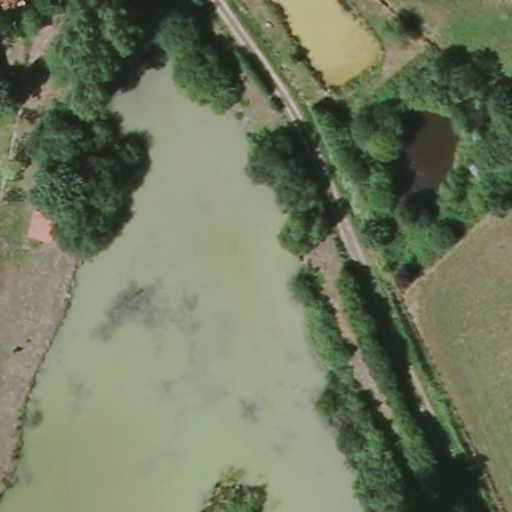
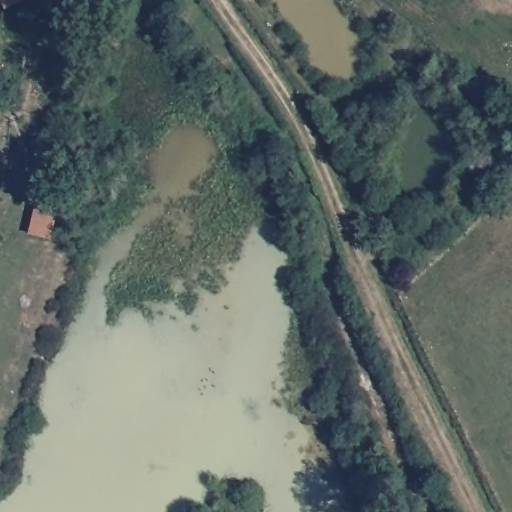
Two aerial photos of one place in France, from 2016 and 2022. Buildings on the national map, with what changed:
unchanged [(7,0),(26,0),(10,7),(7,0)]
unchanged [(58,215),(52,242),(28,236),(34,210),(58,215)]

